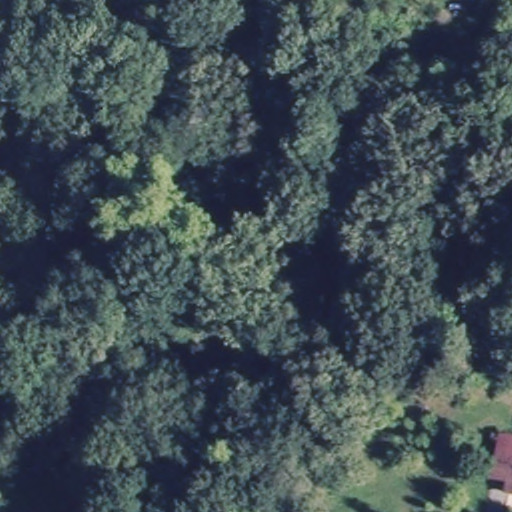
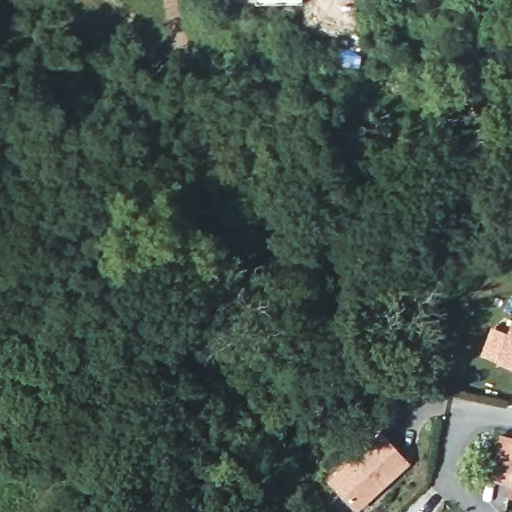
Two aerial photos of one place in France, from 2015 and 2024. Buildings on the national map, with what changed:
new [(254,1),(254,0),(303,0),(303,2),(254,1)]
new [(507,330),(512,317),(512,366),(496,361),(479,357),(491,323),(507,330)]
new [(410,464),(356,512),(353,512),(325,479),(382,430),(410,464)]
unchanged [(502,487),(504,475),(488,471),(492,450),(508,454),(512,455),(512,489),(502,487)]

